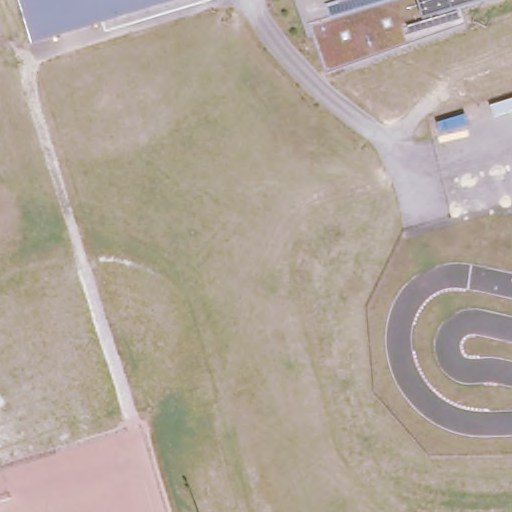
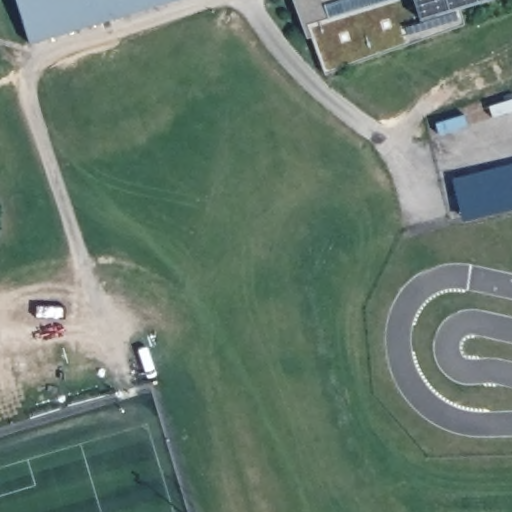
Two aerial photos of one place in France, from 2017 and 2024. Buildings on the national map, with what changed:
unchanged [(30,42),(17,0),(178,0),(30,42)]
unchanged [(463,8),(465,24),(328,69),(314,34),(307,35),(295,0),(490,0),(463,8)]
new [(464,222),(453,180),(512,165),(512,210),(464,222)]

